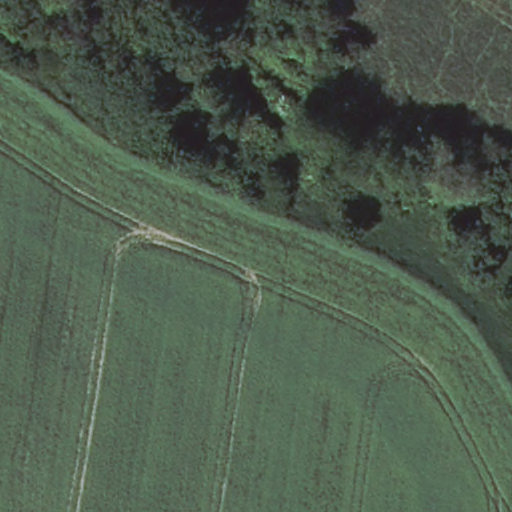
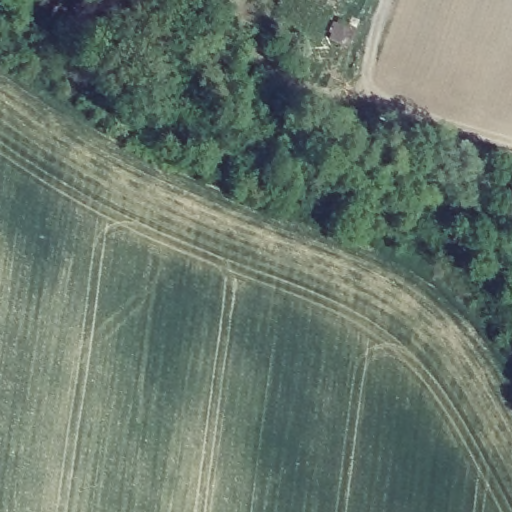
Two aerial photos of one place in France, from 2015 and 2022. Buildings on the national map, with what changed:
unchanged [(323,38),(330,20),(352,25),(347,45),(323,38)]

